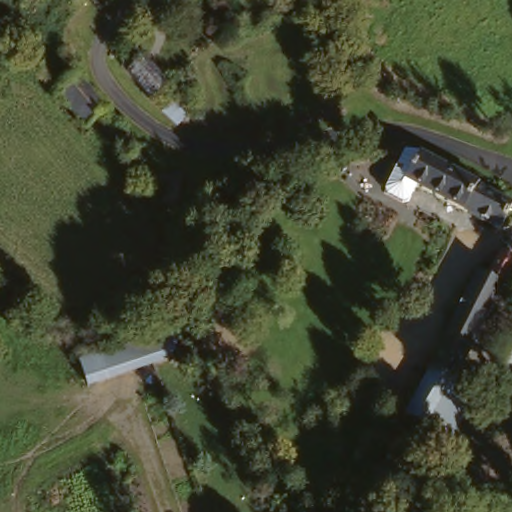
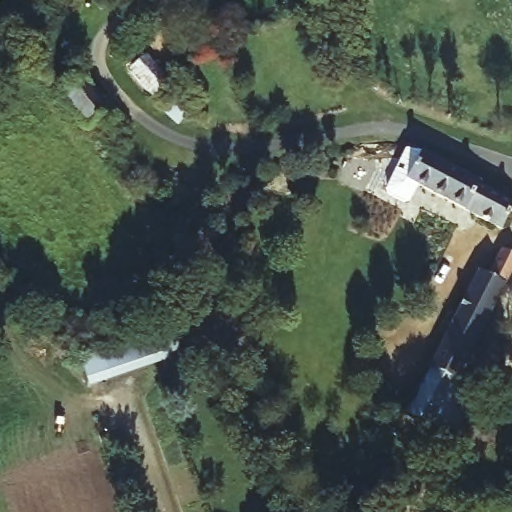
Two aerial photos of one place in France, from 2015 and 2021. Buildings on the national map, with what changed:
unchanged [(168,86),(161,93),(151,103),(129,79),(124,74),(138,60),(141,58),(168,86)]
unchanged [(48,90),(70,70),(73,74),(103,110),(106,114),(85,131),(48,90)]
unchanged [(435,199),(413,189),(411,188),(423,159),(469,179),(467,184),(505,207),(495,227),(445,204),(435,199)]
unchanged [(399,419),(481,273),(490,279),(504,254),(512,257),(512,275),(438,414),(458,424),(443,450),(399,419)]
unchanged [(178,357),(83,392),(71,364),(168,334),(178,357)]

